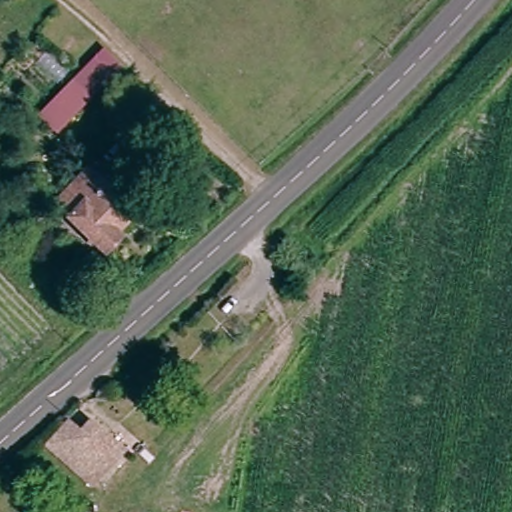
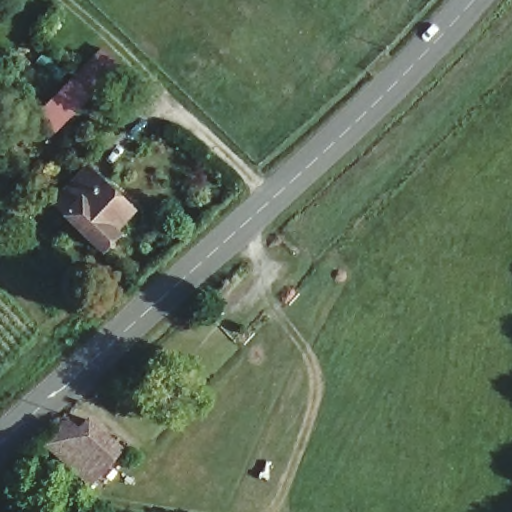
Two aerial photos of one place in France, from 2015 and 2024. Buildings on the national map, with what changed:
unchanged [(38,120),(98,56),(114,73),(54,135),(38,120)]
unchanged [(49,209),(89,172),(105,189),(66,226),(49,209)]
unchanged [(116,234),(121,245),(104,262),(66,226),(105,189),(134,216),(116,234)]
unchanged [(67,424),(78,434),(85,427),(125,459),(91,494),(40,449),(67,424)]

